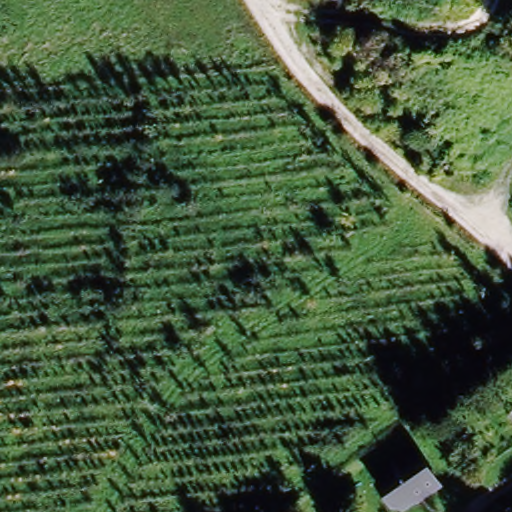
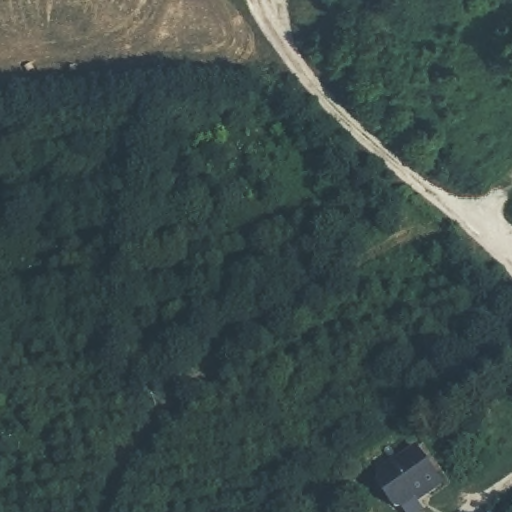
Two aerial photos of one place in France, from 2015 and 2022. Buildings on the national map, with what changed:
unchanged [(437,486),(405,512),(395,512),(370,480),(409,450),(437,486)]

